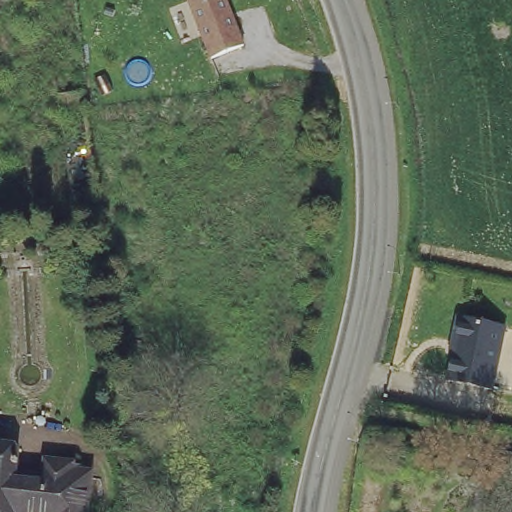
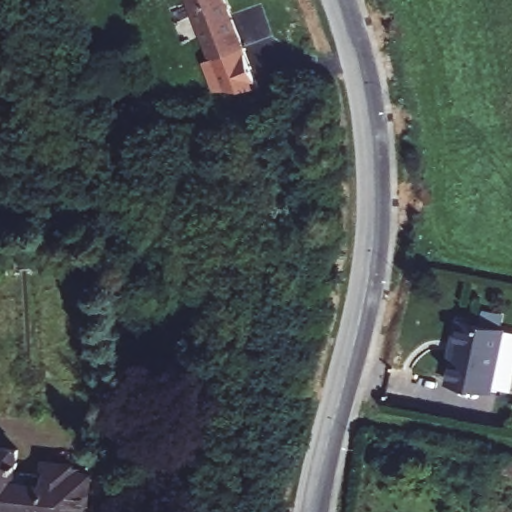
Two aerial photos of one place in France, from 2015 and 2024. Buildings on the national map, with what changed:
unchanged [(241,48),(209,61),(186,0),(223,0),(241,48)]
new [(260,95),(221,110),(204,63),(209,61),(241,48),(260,95)]
unchanged [(44,145),(45,141),(48,139),(53,136),(50,92),(77,89),(78,103),(88,188),(57,190),(55,163),(49,158),(45,153),(44,148),(44,145)]
unchanged [(460,314),(507,324),(495,389),(447,380),(460,314)]
unchanged [(10,475),(41,480),(44,461),(91,468),(83,512),(0,512),(0,450),(13,452),(10,475)]
unchanged [(510,451),(512,451),(512,475),(505,473),(510,451)]

